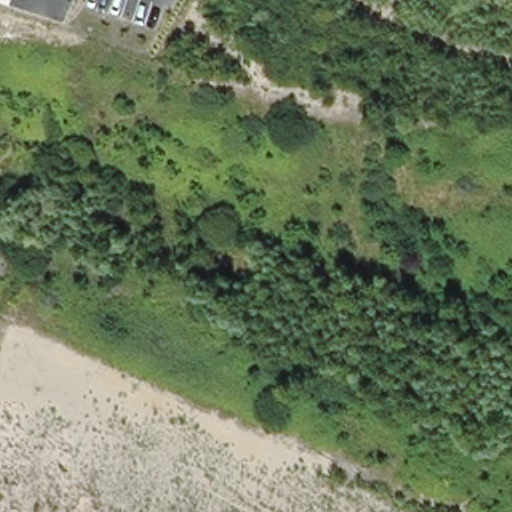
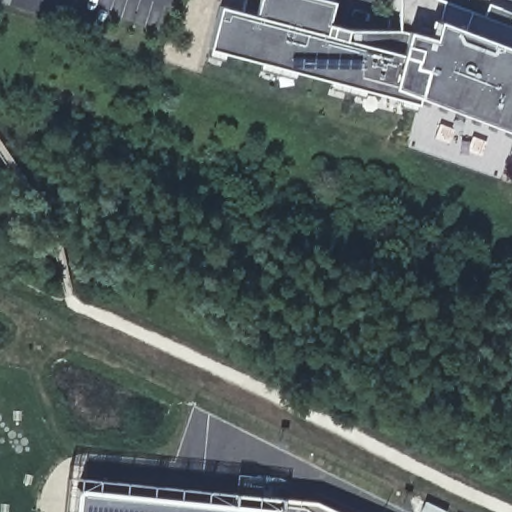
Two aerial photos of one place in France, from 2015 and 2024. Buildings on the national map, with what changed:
new [(206,49),(217,5),(254,14),(258,0),(329,0),(335,2),(330,24),(347,29),(400,29),(409,31),(392,87),(423,100),(422,105),(206,49)]
new [(400,0),(443,0),(487,16),(491,4),(512,12),(512,48),(438,20),(433,37),(409,31),(400,29),(400,0)]
new [(409,31),(433,37),(438,20),(512,48),(512,133),(392,87),(409,31)]
new [(81,477),(285,498),(317,500),(343,512),(62,512),(66,476),(81,477)]

